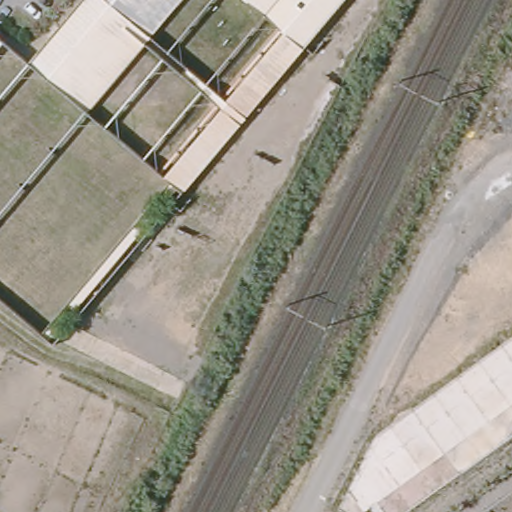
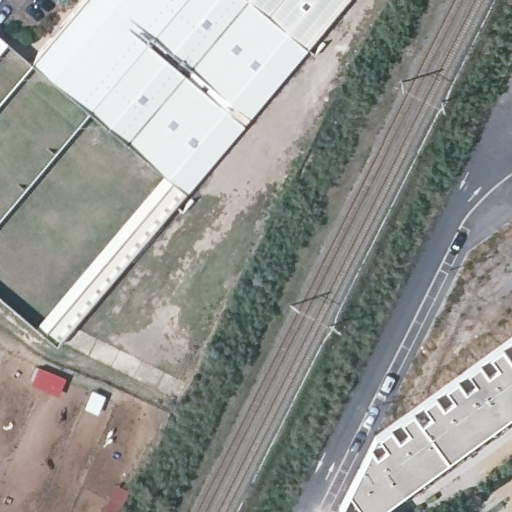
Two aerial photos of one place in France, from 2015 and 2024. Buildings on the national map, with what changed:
unchanged [(28,56),(80,0),(115,0),(48,74),(28,56)]
unchanged [(48,74),(115,0),(181,0),(84,106),(48,74)]
new [(242,0),(282,37),(160,174),(84,106),(181,0),(242,0)]
unchanged [(242,0),(353,0),(302,55),(282,37),(242,0)]
unchanged [(177,191),(168,183),(158,175),(282,37),(302,55),(177,191)]
unchanged [(43,342),(31,333),(168,183),(177,191),(43,342)]
unchanged [(340,505),(376,436),(512,337),(512,432),(402,512),(348,512),(340,505)]

